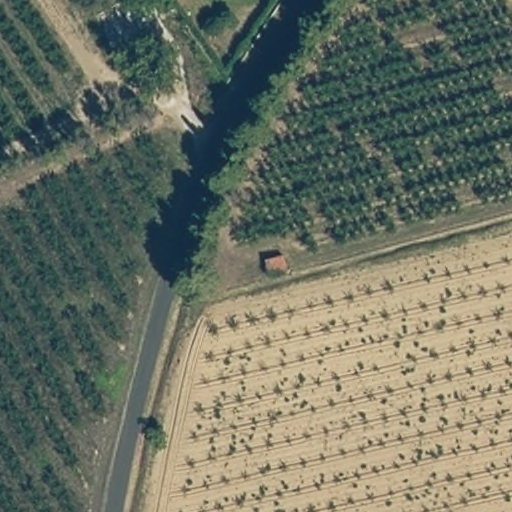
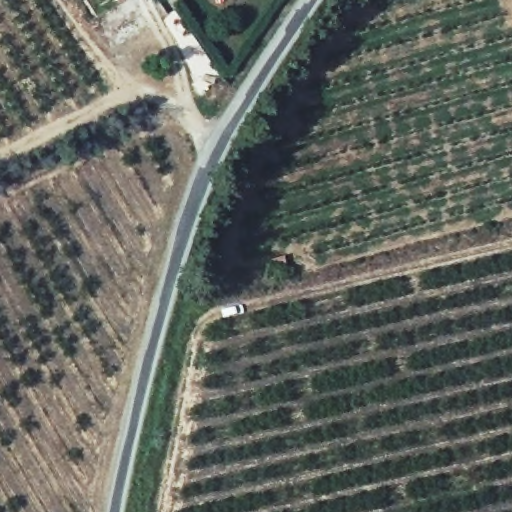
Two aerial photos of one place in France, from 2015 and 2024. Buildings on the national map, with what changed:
unchanged [(287,254),(292,279),(271,283),(269,260),(287,254)]

